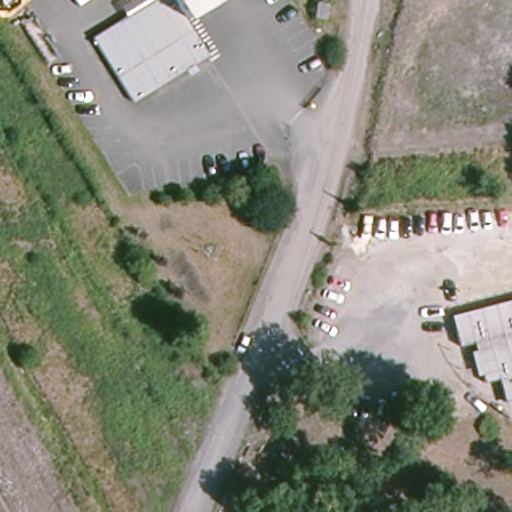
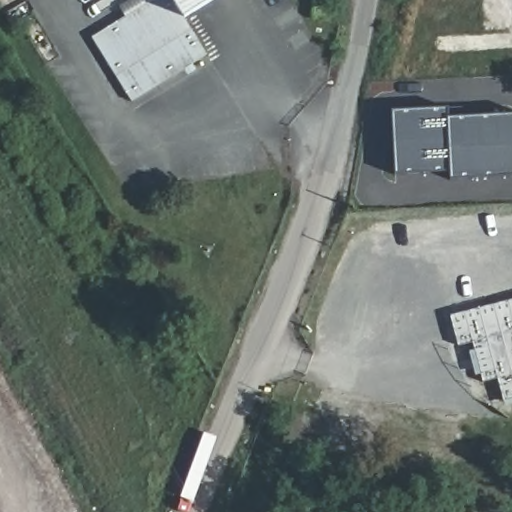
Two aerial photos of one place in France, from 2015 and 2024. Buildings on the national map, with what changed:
unchanged [(186,69),(134,101),(94,38),(127,16),(121,8),(132,1),(131,0),(213,0),(185,18),(209,55),(194,64),(197,69),(189,75),(186,69)]
unchanged [(320,20),(322,6),(332,8),(330,21),(320,20)]
new [(512,115),(512,176),(450,180),(450,172),(395,175),(392,111),(447,108),(449,118),(512,115)]
unchanged [(512,401),(502,404),(496,381),(481,385),(471,345),(457,349),(449,318),(512,301),(512,401)]

